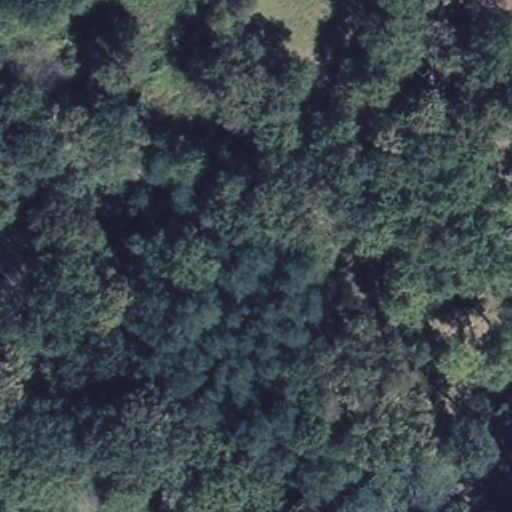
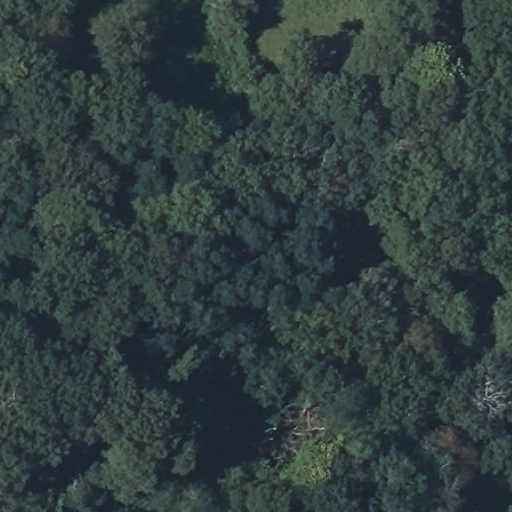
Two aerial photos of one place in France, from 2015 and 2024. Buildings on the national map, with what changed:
[]

